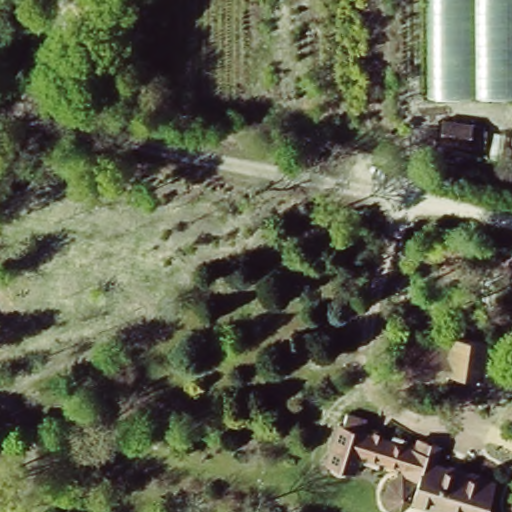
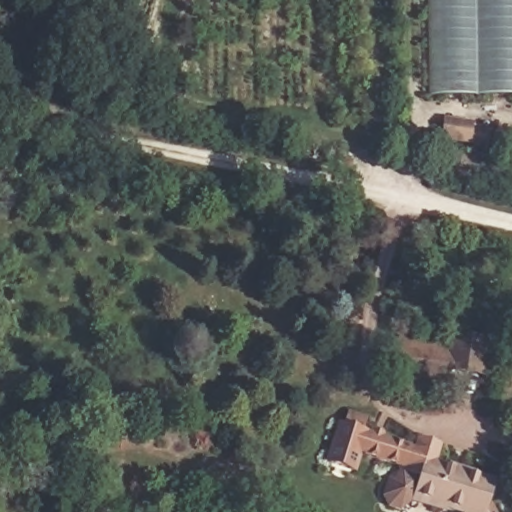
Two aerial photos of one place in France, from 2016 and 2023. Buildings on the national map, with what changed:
unchanged [(512,0),(512,96),(427,98),(426,0),(512,0)]
unchanged [(437,118),(473,116),(477,145),(437,144),(437,118)]
unchanged [(345,425),(349,412),(365,417),(364,423),(415,443),(417,436),(444,446),(439,463),(498,481),(491,508),(493,512),(445,512),(412,504),(402,512),(400,512),(389,508),(383,499),(386,482),(404,472),(361,458),(356,474),(326,464),(338,422),(345,425)]

